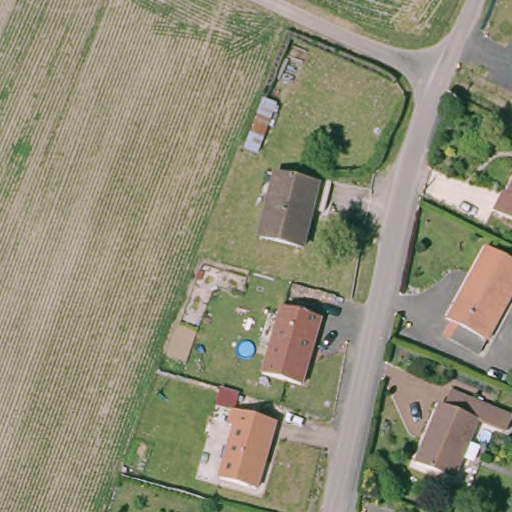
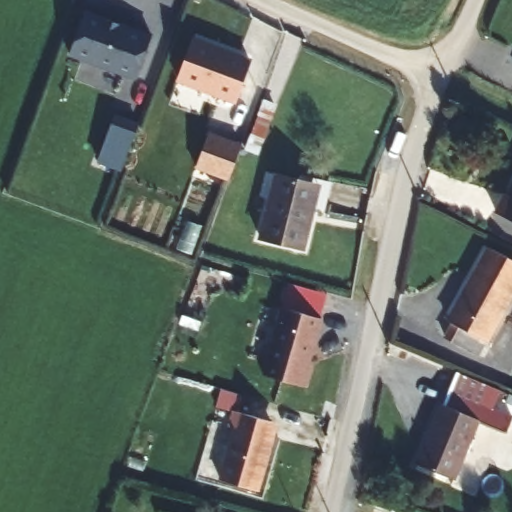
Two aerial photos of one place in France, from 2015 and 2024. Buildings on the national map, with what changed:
new [(152,37),(136,80),(71,55),(87,13),(152,37)]
new [(178,81),(194,37),(253,59),(236,104),(178,81)]
new [(196,169),(209,133),(243,145),(229,182),(196,169)]
unchanged [(279,177),(316,189),(311,209),(321,212),(309,253),(262,239),(279,177)]
unchanged [(504,189),(512,193),(512,192),(512,215),(495,207),(504,189)]
unchanged [(463,329),(458,328),(486,264),(492,249),(512,260),(512,294),(482,356),(457,342),(463,329)]
unchanged [(281,305),(321,317),(303,384),(263,373),(281,305)]
unchanged [(447,404),(452,389),(512,413),(512,424),(509,432),(479,421),(454,481),(417,462),(442,402),(447,404)]
unchanged [(235,427),(229,424),(233,409),(274,421),(271,434),(276,437),(260,489),(221,476),(235,427)]

